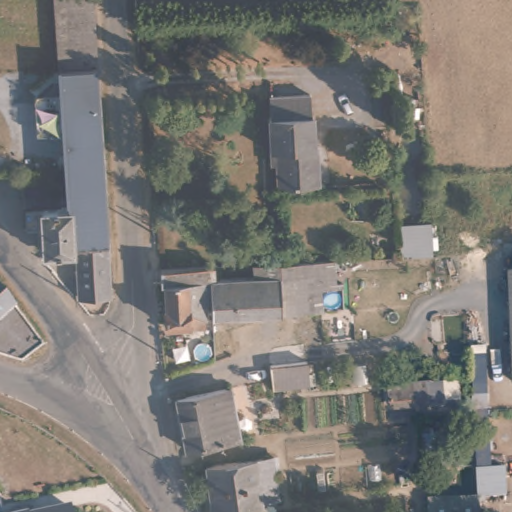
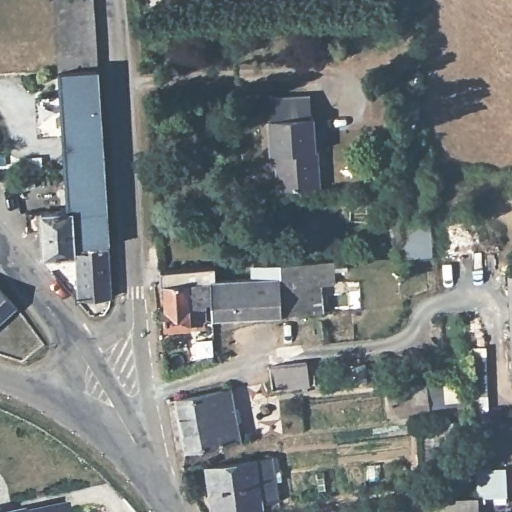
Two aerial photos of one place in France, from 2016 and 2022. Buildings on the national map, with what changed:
unchanged [(99,70),(107,251),(77,252),(76,180),(68,180),(52,0),(93,0),(99,70)]
unchanged [(308,97),(310,117),(313,117),(315,150),(317,150),(320,187),(277,189),(275,151),(268,152),(267,120),(270,120),(268,99),(308,97)]
unchanged [(69,211),(68,180),(76,180),(77,211),(77,252),(77,258),(63,258),(62,254),(45,254),(44,225),(27,226),(28,211),(69,211)]
unchanged [(427,255),(391,255),(390,216),(423,217),(427,255)]
unchanged [(107,251),(109,305),(79,306),(78,271),(78,262),(77,258),(77,252),(107,251)]
unchanged [(315,274),(337,272),(338,291),(347,291),(348,316),(331,317),(255,322),(219,325),(219,308),(218,299),(214,299),(208,300),(210,326),(173,330),(171,295),(166,295),(165,280),(219,278),(220,290),(260,288),(259,277),(315,274)]
unchanged [(0,325),(0,282),(22,307),(0,325)]
unchanged [(465,340),(469,414),(473,493),(459,494),(454,415),(450,342),(465,340)]
unchanged [(306,350),(309,372),(272,374),(269,355),(306,350)]
unchanged [(418,383),(421,402),(385,406),(383,387),(418,383)]
unchanged [(182,405),(237,397),(243,442),(188,449),(182,405)]
unchanged [(276,463),(281,503),(262,504),(262,511),(237,512),(212,512),(210,466),(254,465),(276,463)]
unchanged [(460,512),(410,512),(410,496),(459,494),(460,512)]
unchanged [(70,512),(59,512),(70,510),(70,512)]

